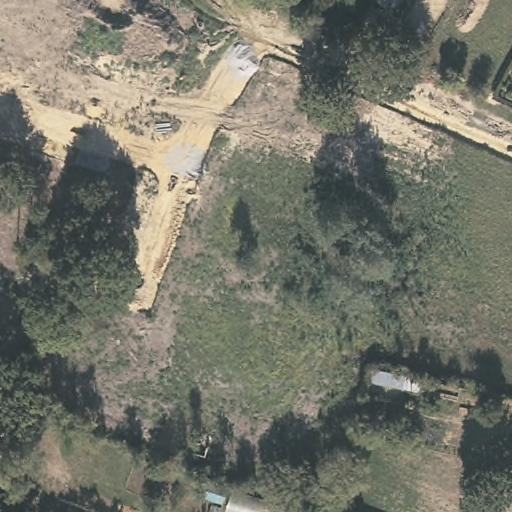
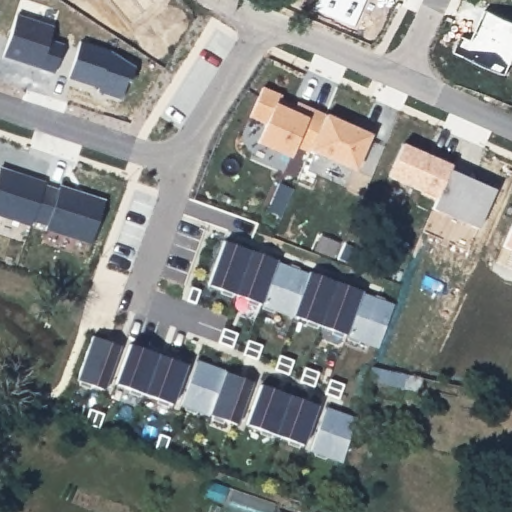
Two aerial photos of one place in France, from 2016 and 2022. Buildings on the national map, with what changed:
new [(54,25),(39,69),(2,56),(16,15),(54,25)]
new [(355,170),(311,151),(296,144),(290,159),(256,144),(266,123),(250,118),(263,87),(282,95),(280,104),(293,111),(296,100),(325,114),(372,134),(355,170)]
new [(452,164),(437,199),(386,177),(403,143),(452,164)]
new [(46,230),(47,226),(31,222),(30,225),(0,216),(0,167),(45,181),(43,184),(59,189),(59,185),(105,199),(93,244),(46,230)]
new [(502,247),(512,224),(512,252),(502,247)]
new [(378,349),(346,337),(295,317),(261,304),(207,285),(223,241),(276,260),(311,273),(363,291),(394,304),(378,349)]
new [(119,347),(105,390),(77,381),(93,336),(119,347)]
new [(130,344),(185,366),(173,405),(115,386),(130,344)]
new [(252,383),(236,425),(209,416),(181,406),(197,361),(225,373),(252,383)]
unchanged [(461,387),(458,400),(390,386),(392,373),(461,387)]
new [(304,446),(246,424),(262,384),(317,407),(304,446)]
new [(353,416),(342,464),(310,451),(326,407),(353,416)]

